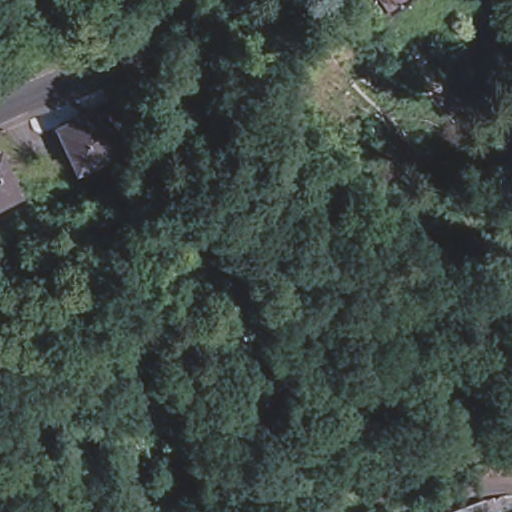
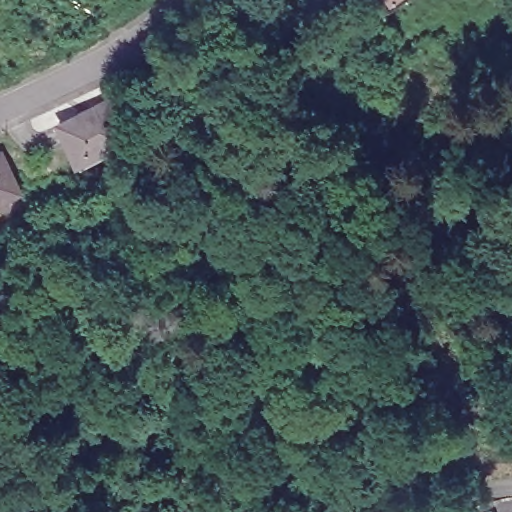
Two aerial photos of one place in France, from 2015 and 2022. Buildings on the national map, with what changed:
unchanged [(61,125),(110,100),(128,136),(79,160),(61,125)]
unchanged [(2,153),(20,190),(0,199),(0,154),(2,153)]

